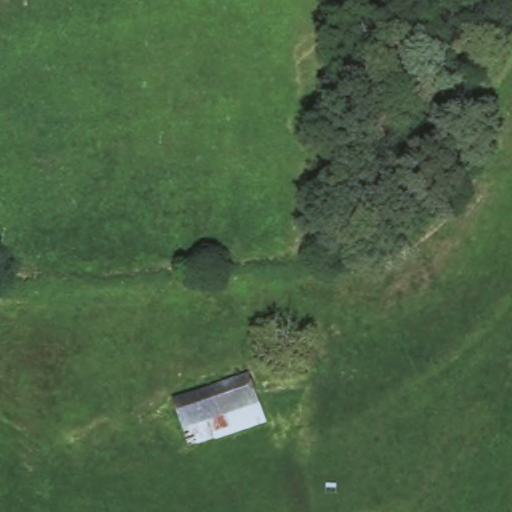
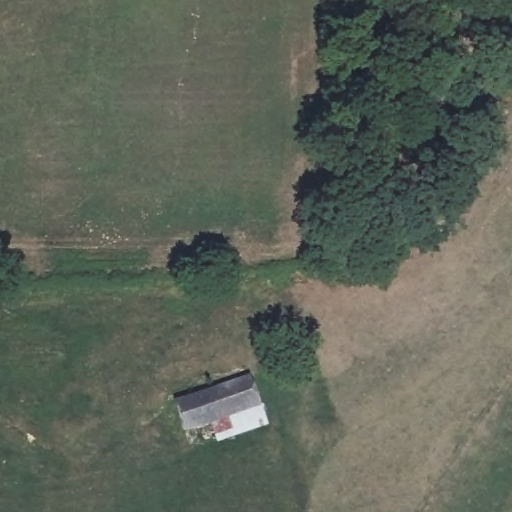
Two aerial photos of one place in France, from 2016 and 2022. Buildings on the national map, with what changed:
unchanged [(250,377),(267,426),(215,443),(214,438),(189,446),(175,402),(250,377)]

